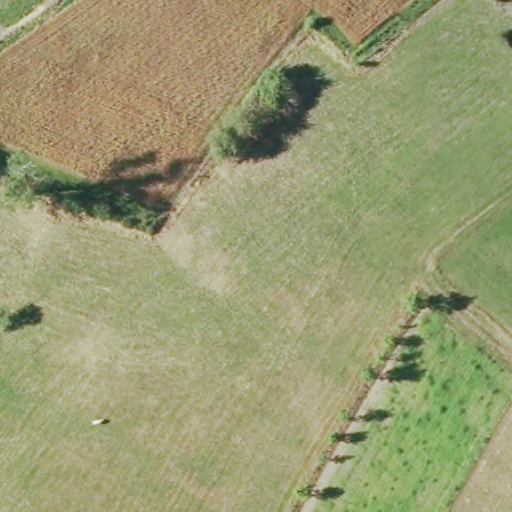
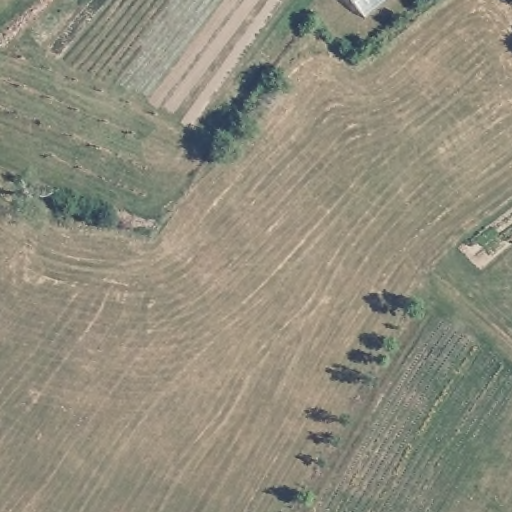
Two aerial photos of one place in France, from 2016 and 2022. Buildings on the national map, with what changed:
new [(365,15),(353,0),(384,0),(365,15)]

